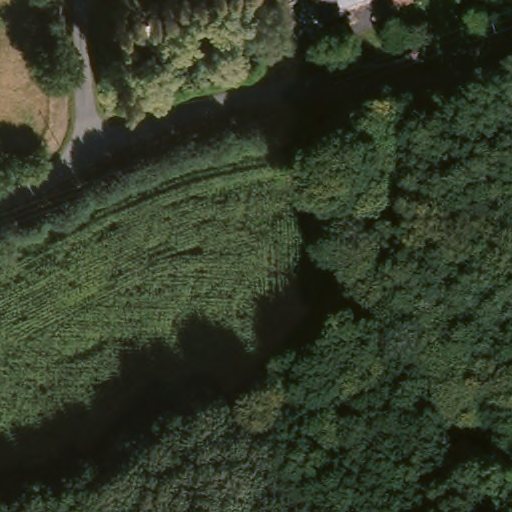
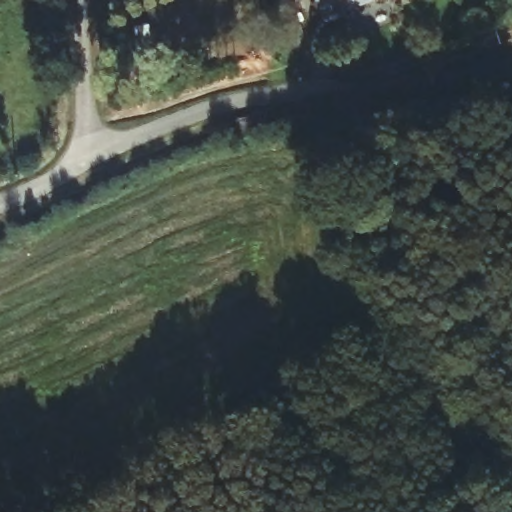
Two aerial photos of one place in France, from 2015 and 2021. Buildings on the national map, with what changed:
unchanged [(332,0),(395,0),(337,17),(332,0)]

